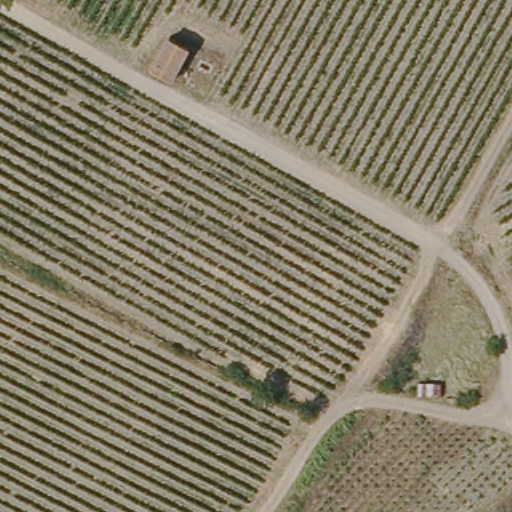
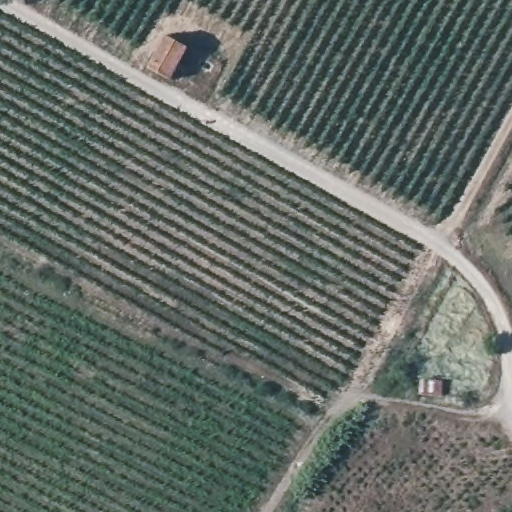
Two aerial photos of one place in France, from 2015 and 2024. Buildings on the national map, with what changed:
unchanged [(190,47),(171,80),(149,68),(168,35),(190,47)]
unchanged [(438,387),(415,388),(415,376),(438,377),(438,387)]

